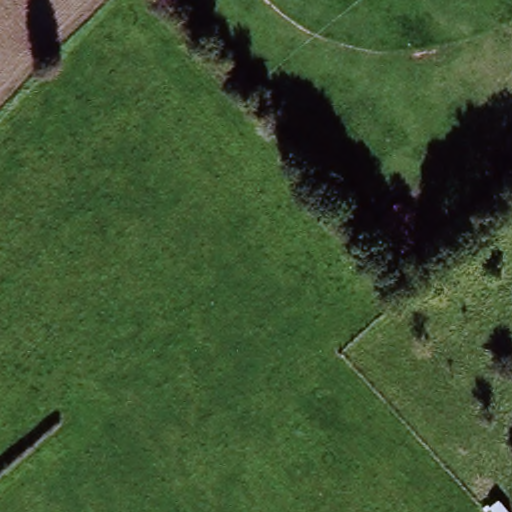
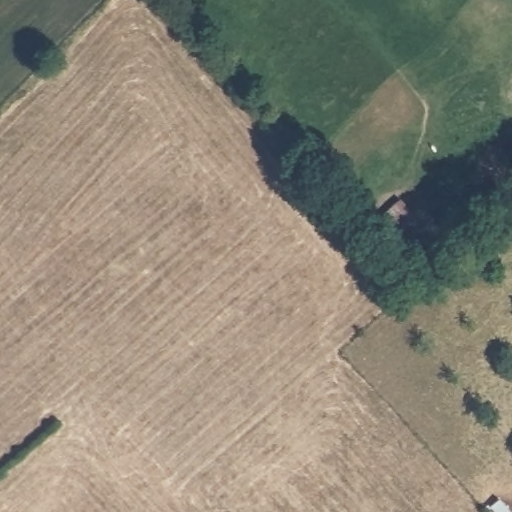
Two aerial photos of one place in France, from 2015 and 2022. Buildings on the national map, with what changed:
unchanged [(392,244),(378,229),(398,207),(415,223),(392,244)]

